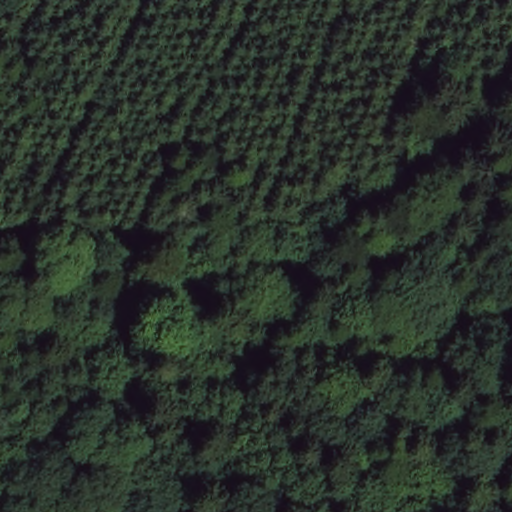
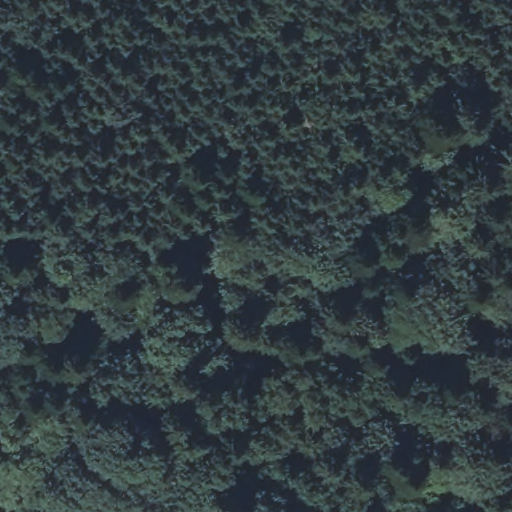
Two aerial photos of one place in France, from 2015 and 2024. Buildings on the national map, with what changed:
[]

